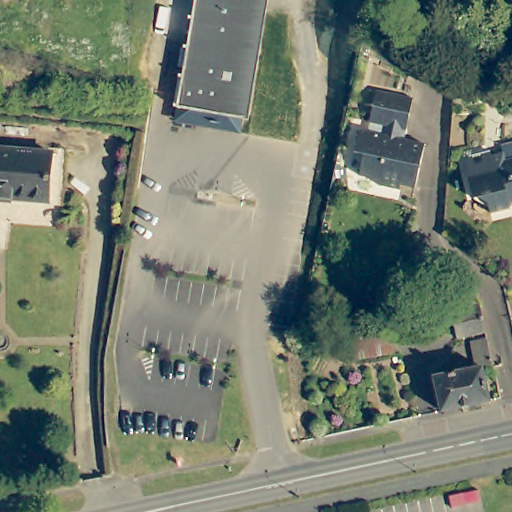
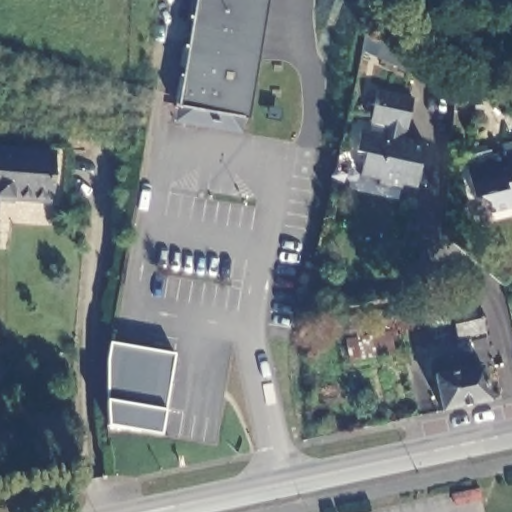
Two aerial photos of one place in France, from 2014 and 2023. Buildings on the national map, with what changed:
unchanged [(176,122),(178,108),(196,0),(264,0),(244,119),(241,133),(176,122)]
unchanged [(417,58),(411,73),(361,50),(364,35),(417,58)]
unchanged [(418,98),(411,130),(408,129),(406,139),(430,144),(420,188),(406,185),(405,190),(382,185),(383,180),(364,176),(369,154),(360,152),(365,130),(386,134),(388,125),(375,122),(382,90),(418,98)]
unchanged [(0,199),(0,150),(53,154),(49,203),(0,199)]
unchanged [(474,166),(496,161),(497,166),(508,163),(506,156),(512,155),(512,220),(495,223),(490,206),(478,209),(470,176),(474,166)]
unchanged [(425,316),(482,305),(487,333),(459,339),(455,320),(427,326),(425,316)]
unchanged [(389,333),(393,353),(350,361),(346,340),(389,333)]
unchanged [(436,377),(478,369),(472,340),(488,337),(494,367),(484,369),(491,402),(443,412),(436,377)]
new [(164,410),(161,433),(108,426),(107,401),(106,361),(109,342),(174,354),(164,410)]

